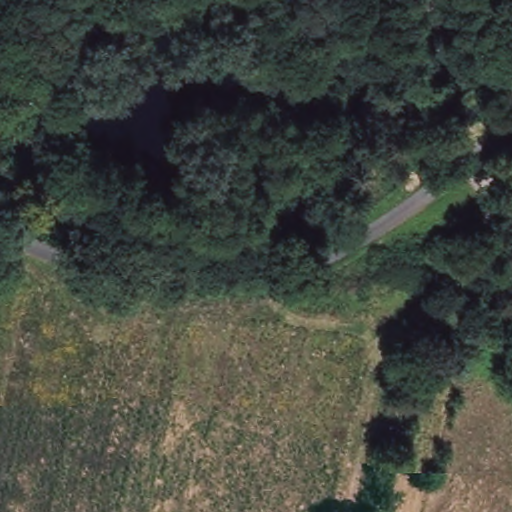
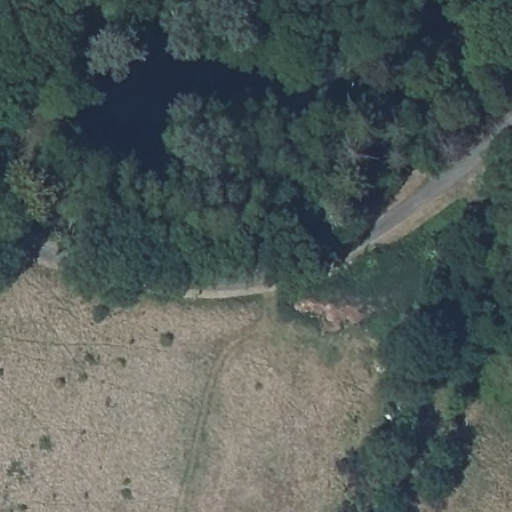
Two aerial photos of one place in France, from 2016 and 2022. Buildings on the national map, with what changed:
[]

